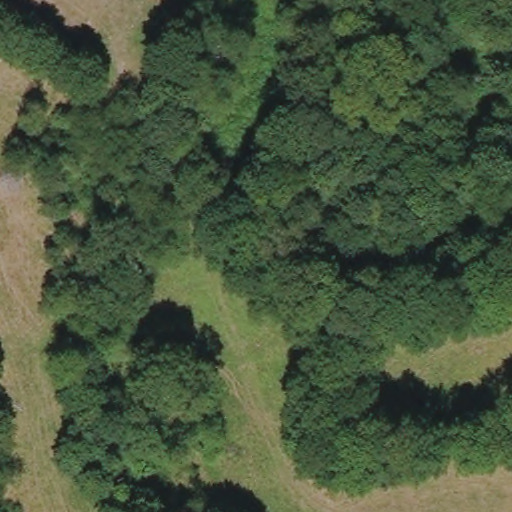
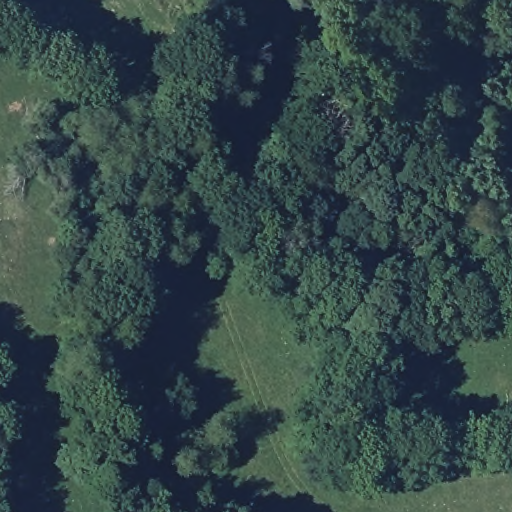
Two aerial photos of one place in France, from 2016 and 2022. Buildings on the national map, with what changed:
[]

